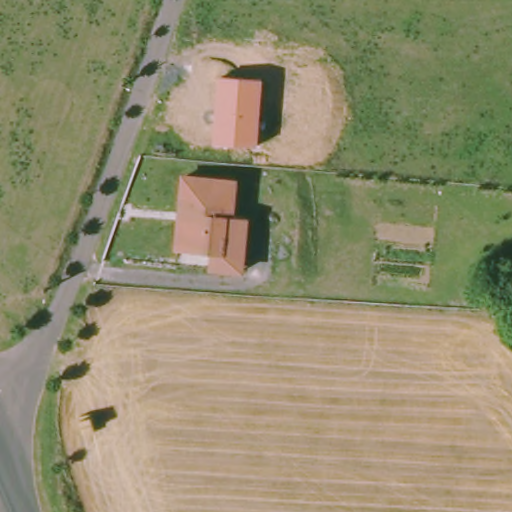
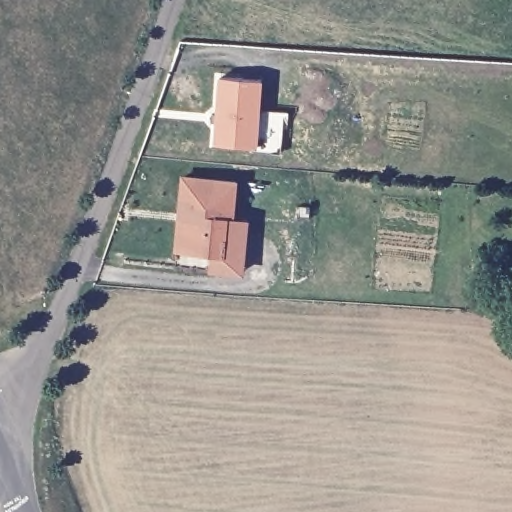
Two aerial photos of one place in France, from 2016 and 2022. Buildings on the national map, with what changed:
unchanged [(259,148),(212,145),(219,78),(262,81),(259,148)]
unchanged [(174,245),(180,175),(233,179),(230,214),(224,214),(221,249),(220,253),(174,249),(174,245)]
unchanged [(239,269),(219,267),(220,253),(221,249),(224,214),(230,214),(244,216),(241,250),(239,269)]

